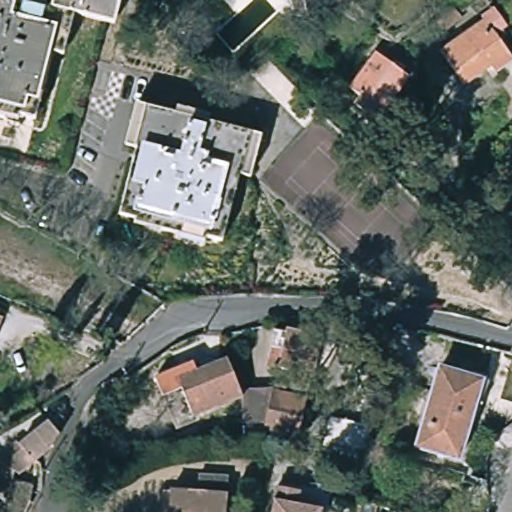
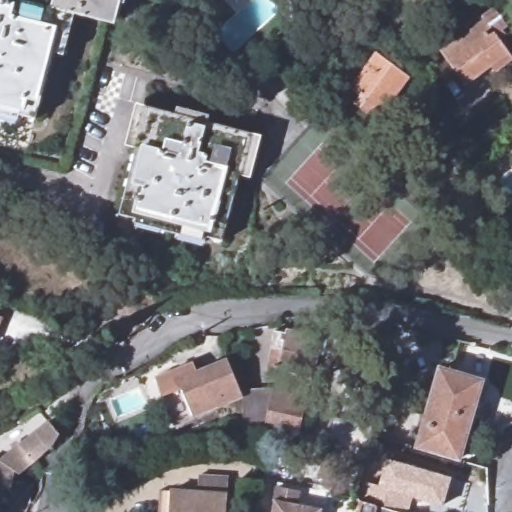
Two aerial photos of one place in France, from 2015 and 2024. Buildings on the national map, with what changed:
unchanged [(52,52),(49,51),(33,115),(0,107),(0,0),(19,0),(49,7),(51,0),(118,0),(113,23),(63,10),(52,52)]
unchanged [(478,32),(467,16),(483,5),(506,38),(501,41),(505,46),(498,52),(510,70),(493,82),(488,75),(460,95),(437,61),(478,32)]
unchanged [(451,19),(457,27),(448,35),(441,40),(435,30),(451,19)]
unchanged [(375,55),(409,80),(373,125),(351,108),(358,98),(349,91),(375,55)]
unchanged [(140,109),(249,135),(239,177),(235,176),(219,240),(118,215),(134,152),(130,151),(140,109)]
unchanged [(154,309),(142,329),(117,315),(128,294),(154,309)]
unchanged [(306,398),(298,431),(296,437),(265,431),(279,364),(266,361),(271,332),(285,334),(285,331),(319,337),(311,373),(306,398)]
unchanged [(462,362),(465,347),(496,355),(492,370),(462,362)]
unchanged [(405,354),(401,378),(384,374),(387,350),(405,354)]
unchanged [(172,378),(224,358),(238,392),(186,413),(172,378)]
unchanged [(436,361),(449,365),(434,424),(469,432),(462,461),(414,447),(436,361)]
unchanged [(469,432),(434,424),(449,365),(483,375),(469,432)]
unchanged [(333,430),(338,402),(379,408),(375,436),(333,430)]
unchanged [(11,496),(0,494),(0,464),(1,465),(50,429),(58,440),(54,450),(37,466),(19,478),(15,475),(13,485),(33,490),(30,503),(30,509),(29,512),(7,512),(11,496)]
new [(452,476),(444,506),(412,497),(408,512),(403,512),(365,501),(369,483),(379,485),(387,458),(452,476)]
unchanged [(268,485),(290,490),(317,495),(314,507),(313,512),(261,512),(268,485)]
unchanged [(162,491),(228,495),(227,512),(161,512),(162,491)]

